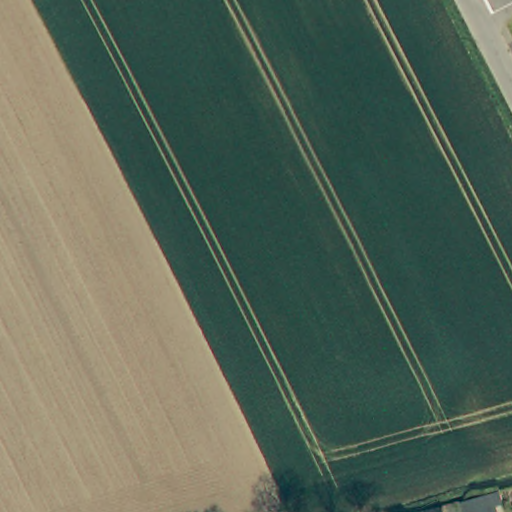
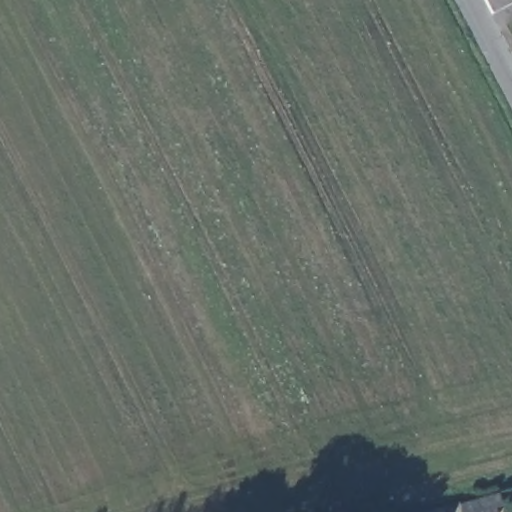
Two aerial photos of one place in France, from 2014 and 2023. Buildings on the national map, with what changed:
unchanged [(492,506),(482,509),(483,512),(433,512),(489,496),(492,506)]

